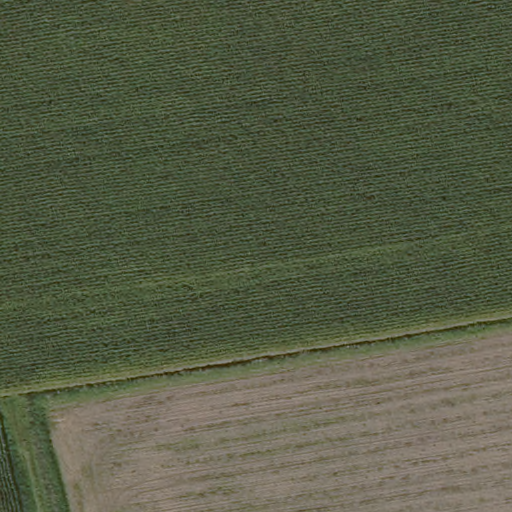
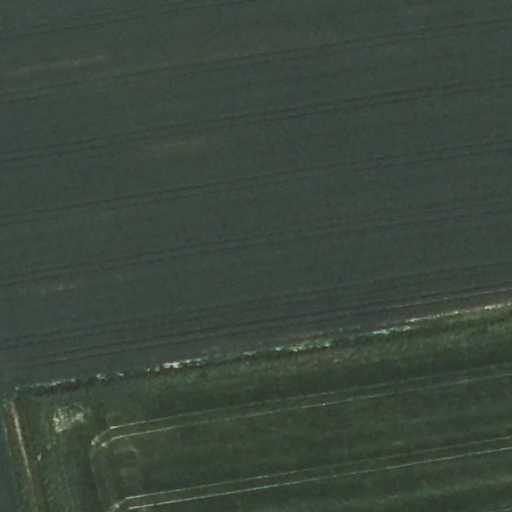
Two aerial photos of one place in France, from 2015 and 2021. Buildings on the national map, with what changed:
[]

